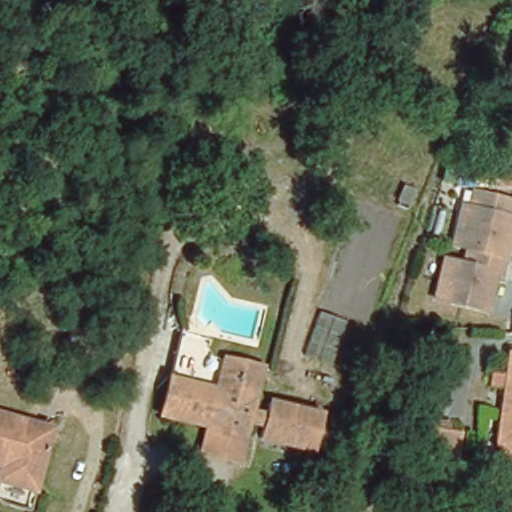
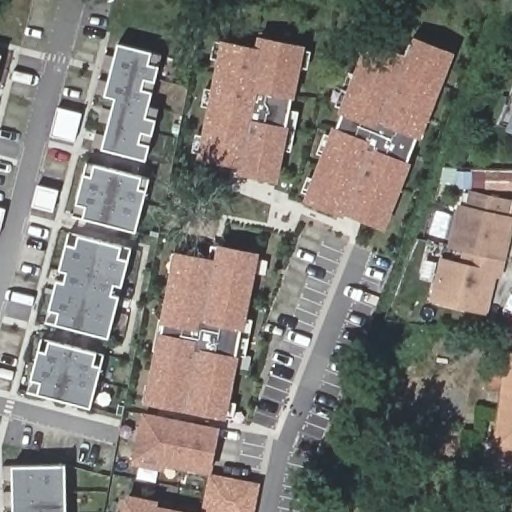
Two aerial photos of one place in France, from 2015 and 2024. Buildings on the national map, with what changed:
new [(220,58),(211,56),(215,40),(224,41),(258,49),(260,41),(283,41),(304,46),(312,48),(308,67),(300,66),(291,109),(300,110),(292,150),(283,148),(277,179),(242,172),(245,164),(201,155),(202,152),(193,150),(196,132),(205,134),(220,58)]
new [(391,206),(384,225),(341,211),(342,209),(309,198),(370,43),(405,56),(410,41),(420,41),(452,53),(445,69),(450,71),(445,84),(440,82),(433,100),(438,101),(424,136),(420,135),(407,168),(411,169),(395,208),(391,206)]
new [(111,123),(102,121),(105,108),(115,110),(118,98),(107,96),(98,93),(101,80),(110,82),(114,70),(104,68),(107,55),(117,56),(120,43),(157,51),(167,55),(164,66),(154,106),(164,108),(161,120),(151,160),(105,149),(95,146),(99,133),(109,135),(111,123)]
new [(3,56),(0,69),(0,56),(3,56)]
new [(512,125),(510,125),(502,121),(512,98),(512,125)]
new [(60,108),(84,113),(77,141),(53,136),(60,108)]
new [(87,161),(94,164),(143,176),(150,177),(147,189),(138,228),(75,213),(85,173),(87,161)]
new [(39,188),(63,194),(59,214),(34,208),(39,188)]
unchanged [(466,211),(470,196),(506,204),(502,220),(507,221),(498,260),(505,261),(501,279),(497,277),(488,315),(436,303),(445,264),(465,269),(468,253),(447,248),(456,209),(466,211)]
new [(8,210),(1,238),(0,238),(0,208),(8,210)]
new [(66,282),(69,272),(61,271),(67,244),(70,232),(77,234),(126,246),(134,248),(130,259),(124,286),(116,284),(114,294),(121,296),(111,338),(49,322),(59,281),(66,282)]
new [(144,403),(157,332),(160,332),(161,324),(160,323),(174,250),(195,255),(215,259),(219,243),(240,248),(260,252),(246,318),(252,319),(245,357),(239,355),(230,401),(236,402),(232,419),(226,417),(225,419),(205,415),(164,407),(144,403)]
unchanged [(512,328),(512,332),(511,332),(512,328)]
new [(44,340),(51,341),(100,353),(107,355),(105,366),(95,406),(32,391),(41,351),(44,340)]
unchanged [(499,442),(510,356),(512,356),(512,464),(496,462),(499,442)]
demolished [(230,445),(212,441),(201,425),(202,422),(157,411),(164,380),(185,384),(182,394),(203,398),(205,388),(212,390),(214,379),(234,383),(237,368),(257,372),(246,416),(244,425),(241,436),(230,445)]
demolished [(319,414),(310,451),(260,439),(263,424),(265,416),(269,402),(319,414)]
new [(142,410),(221,426),(216,451),(211,474),(165,465),(164,470),(131,464),(132,459),(142,410)]
demolished [(0,484),(0,415),(45,427),(30,491),(0,484)]
unchanged [(447,432),(445,460),(420,457),(422,429),(447,432)]
new [(67,512),(12,512),(12,505),(2,505),(2,491),(12,491),(12,479),(2,479),(1,465),(11,465),(65,463),(67,512)]
new [(260,483),(254,512),(202,512),(210,474),(260,483)]
new [(130,499),(158,504),(157,510),(171,512),(127,512),(130,499)]

